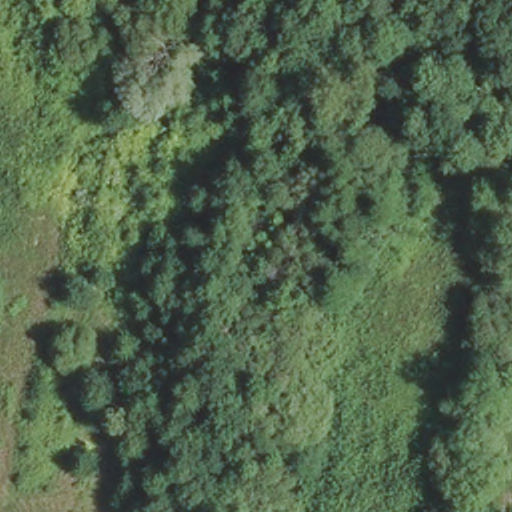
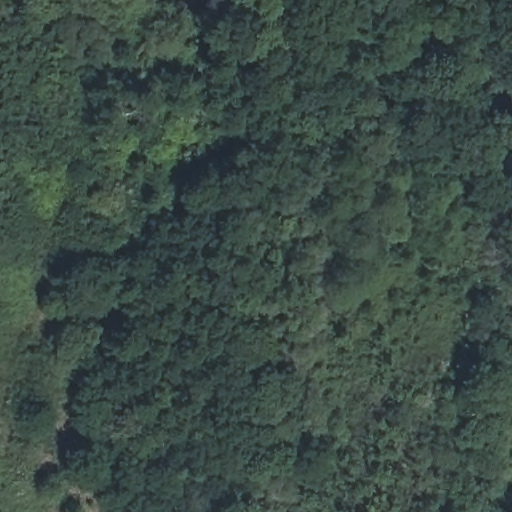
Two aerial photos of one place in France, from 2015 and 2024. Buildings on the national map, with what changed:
[]

